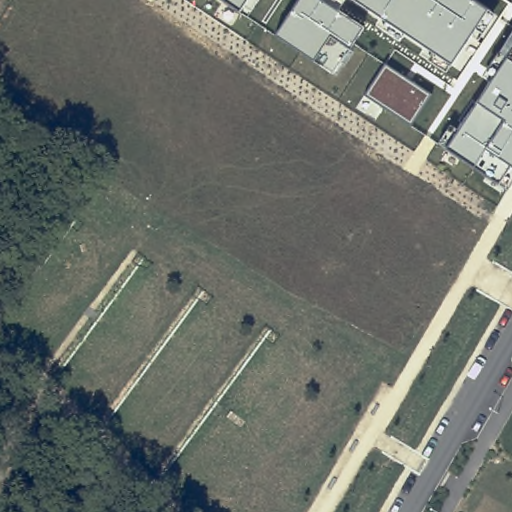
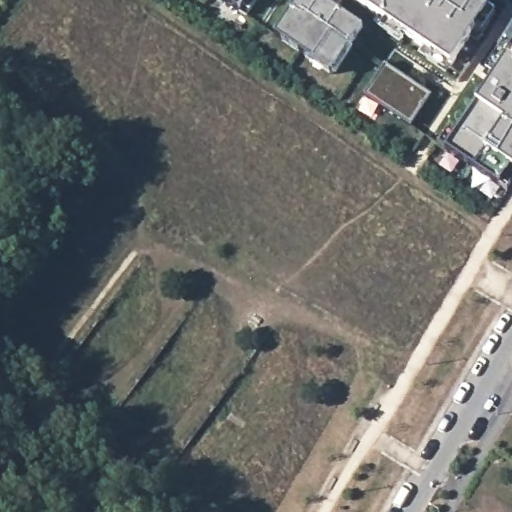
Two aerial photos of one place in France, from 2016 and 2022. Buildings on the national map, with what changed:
unchanged [(244,0),(238,9),(225,0),(244,0)]
unchanged [(321,0),(362,27),(331,72),(276,34),(298,0),(321,0)]
unchanged [(496,14),(483,33),(477,40),(469,35),(452,63),(358,0),(474,0),(487,9),(496,14)]
unchanged [(494,78),(486,72),(512,31),(512,179),(507,188),(498,181),(447,148),(479,102),(494,78)]
unchanged [(366,94),(385,65),(429,94),(410,124),(366,94)]

